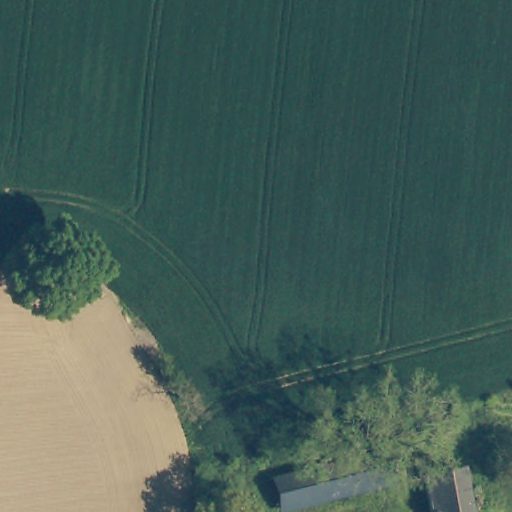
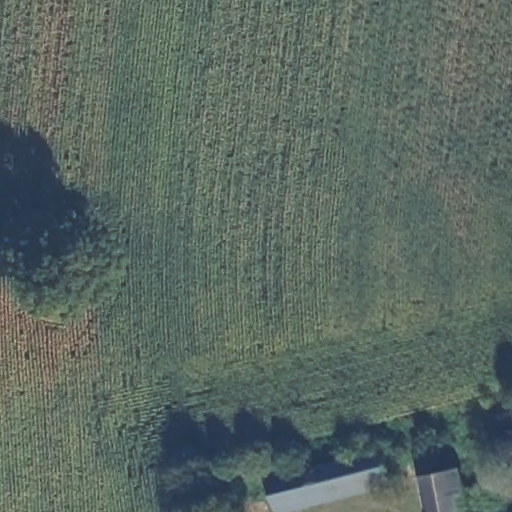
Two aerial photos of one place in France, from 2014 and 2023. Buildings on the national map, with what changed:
unchanged [(302,512),(283,512),(275,480),(271,463),(276,462),(321,450),(325,466),(343,462),(387,451),(397,488),(302,512)]
unchanged [(468,512),(425,512),(417,474),(459,465),(468,512)]

